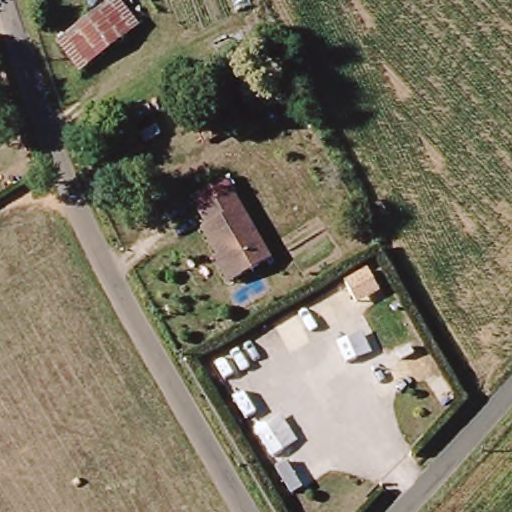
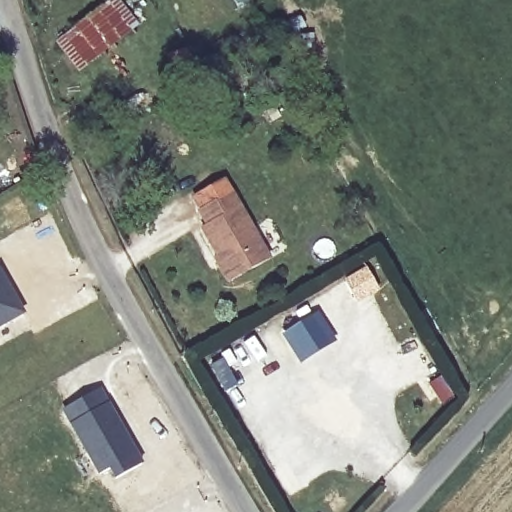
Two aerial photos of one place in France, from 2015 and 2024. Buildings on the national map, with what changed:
unchanged [(135,24),(79,70),(56,42),(109,0),(115,0),(135,24)]
unchanged [(268,266),(228,287),(197,230),(201,227),(196,217),(199,215),(191,200),(223,182),(268,266)]
unchanged [(348,292),(342,282),(365,270),(375,288),(365,293),(353,301),(348,292)]
new [(24,313),(0,327),(0,272),(24,313)]
demolished [(273,325),(292,314),(302,334),(284,345),(273,325)]
new [(141,461),(115,475),(109,465),(99,472),(70,421),(62,407),(99,387),(106,400),(125,432),(129,441),(141,461)]

